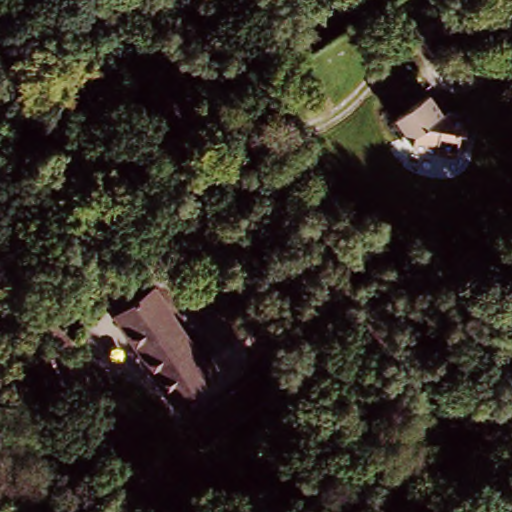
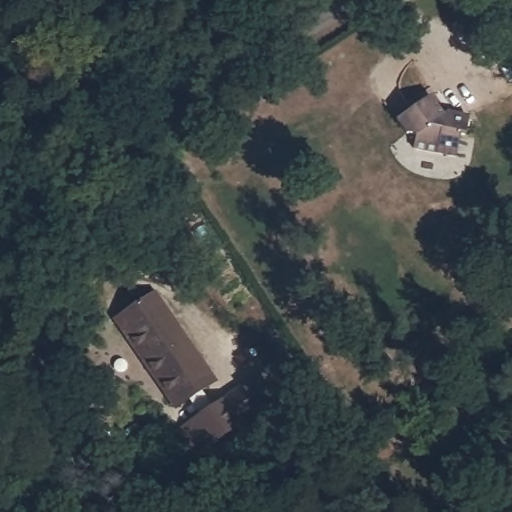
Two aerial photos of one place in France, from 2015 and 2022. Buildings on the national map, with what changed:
unchanged [(467,120),(464,135),(460,136),(456,159),(412,150),(413,142),(402,137),(394,122),(429,100),(439,117),(447,115),(467,120)]
unchanged [(153,293),(207,385),(166,408),(113,316),(153,293)]
unchanged [(238,400),(253,424),(179,467),(164,442),(238,400)]

